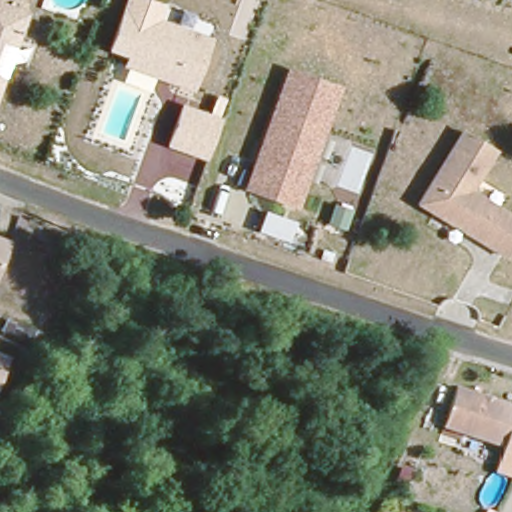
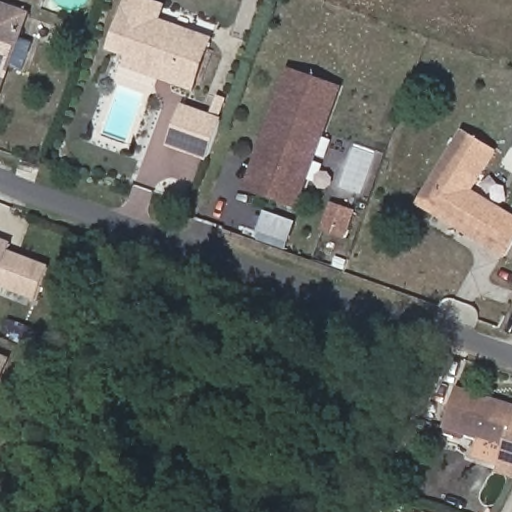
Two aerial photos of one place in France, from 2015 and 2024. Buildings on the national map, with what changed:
unchanged [(29,11),(0,92),(0,0),(29,11)]
unchanged [(160,21),(216,40),(197,92),(125,66),(127,59),(108,52),(126,0),(150,0),(166,5),(160,21)]
unchanged [(246,190),(287,69),(343,88),(299,208),(246,190)]
unchanged [(206,160),(168,146),(183,105),(221,118),(206,160)]
unchanged [(497,150),(473,190),(512,214),(512,245),(503,257),(414,202),(461,127),(497,150)]
unchanged [(12,242),(0,275),(0,238),(12,242)]
new [(9,251),(50,266),(36,302),(0,288),(0,276),(9,251)]
unchanged [(9,358),(0,384),(0,354),(9,358)]
unchanged [(512,404),(512,420),(502,447),(441,427),(455,386),(512,404)]
unchanged [(512,426),(512,478),(495,472),(512,426)]

